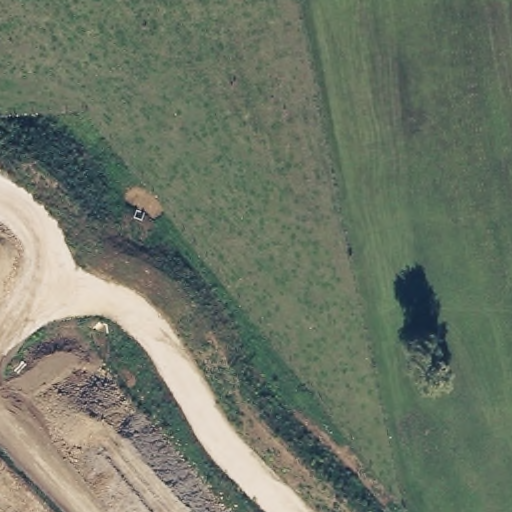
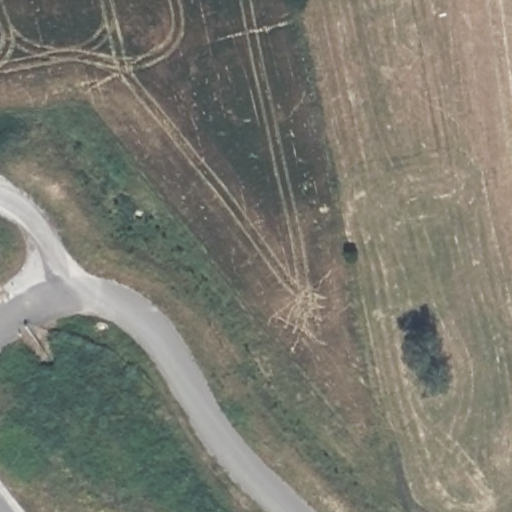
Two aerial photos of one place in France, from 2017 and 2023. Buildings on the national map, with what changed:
[]

